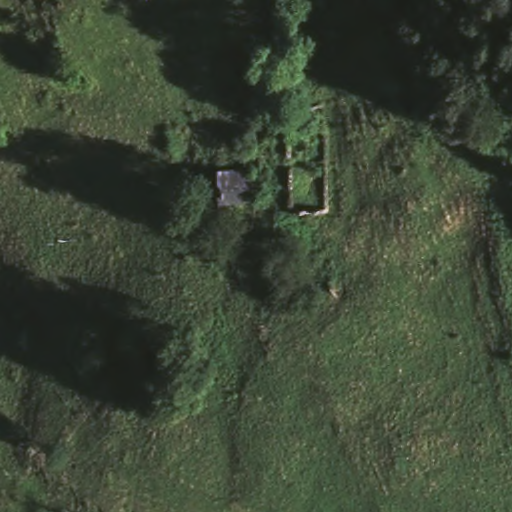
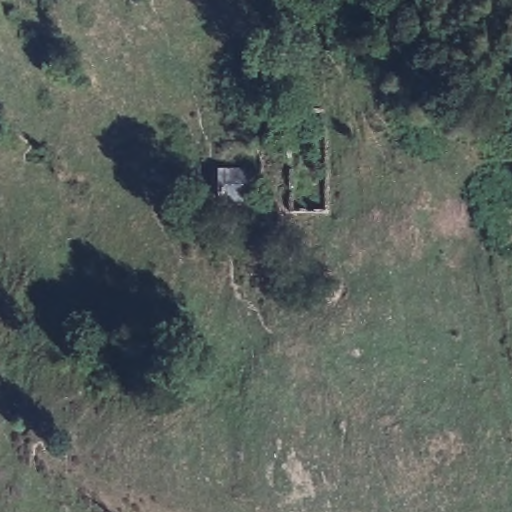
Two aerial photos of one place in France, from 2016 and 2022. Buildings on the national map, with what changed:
unchanged [(257,164),(257,216),(216,216),(217,196),(219,162),(257,164)]

